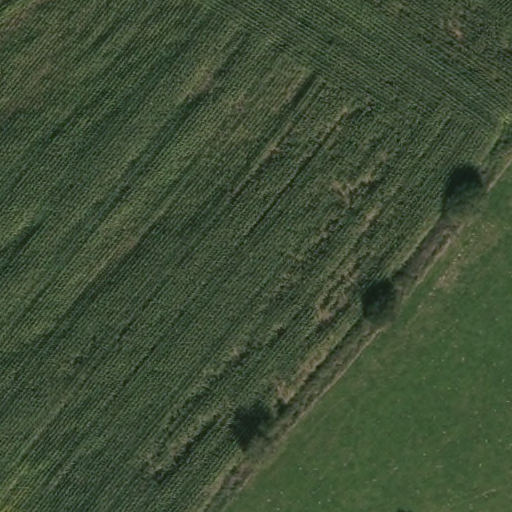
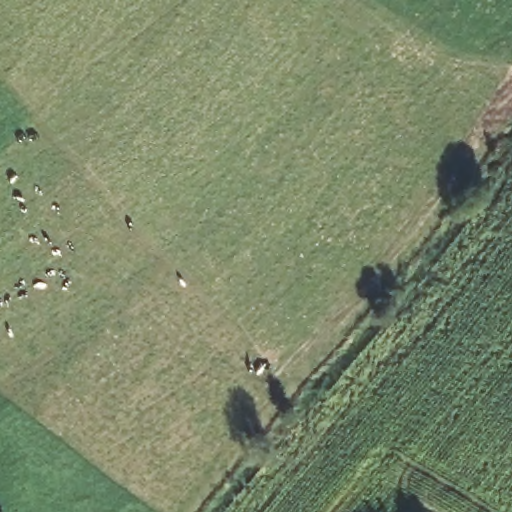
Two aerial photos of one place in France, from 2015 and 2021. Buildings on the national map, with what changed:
[]

